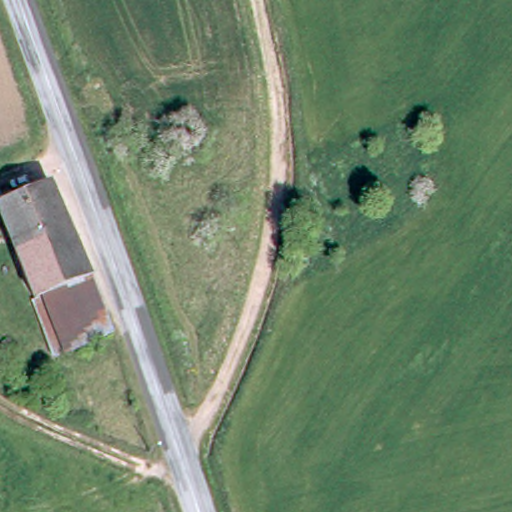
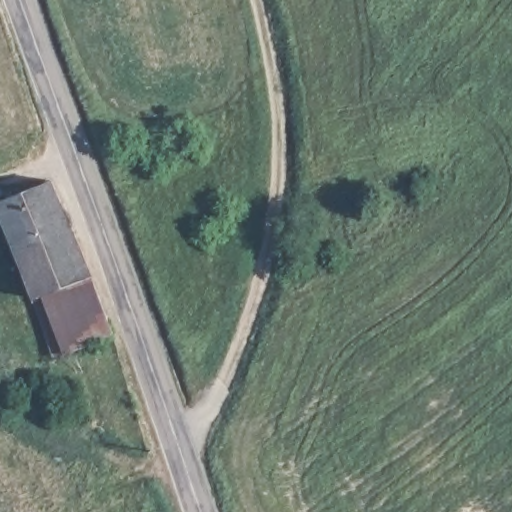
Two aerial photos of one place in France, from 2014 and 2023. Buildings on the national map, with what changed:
unchanged [(0,214),(0,199),(53,178),(117,333),(67,354),(58,357),(35,300),(0,214)]

